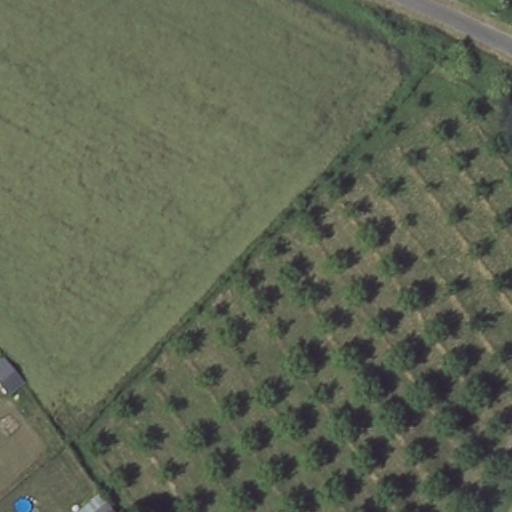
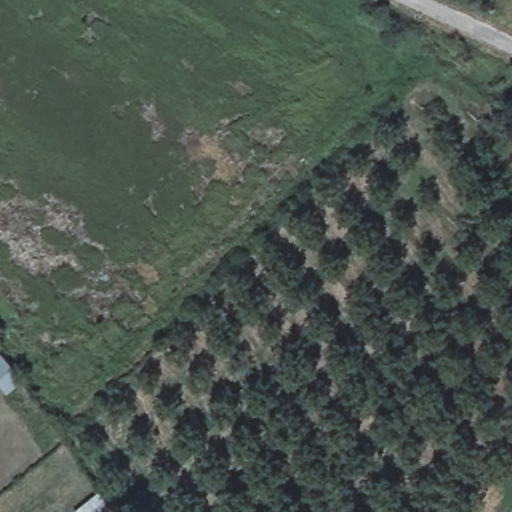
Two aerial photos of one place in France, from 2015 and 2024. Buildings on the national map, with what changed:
unchanged [(7,368),(0,357),(0,339),(5,336),(19,360),(7,368)]
unchanged [(107,512),(101,501),(113,492),(126,512),(107,512)]

